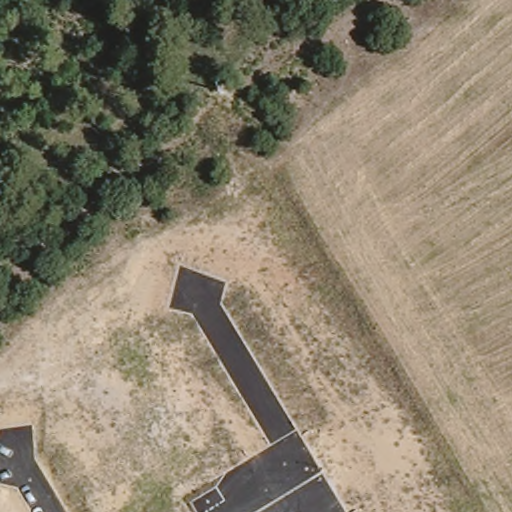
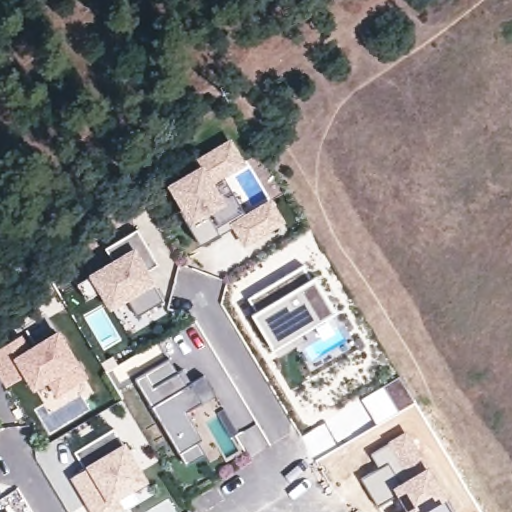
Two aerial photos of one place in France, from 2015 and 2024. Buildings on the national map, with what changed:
new [(193,156),(226,136),(239,157),(219,169),(230,188),(244,210),(267,196),(278,215),(242,237),(228,213),(214,222),(217,228),(197,240),(178,208),(182,205),(167,180),(196,162),(193,156)]
new [(161,266),(152,273),(158,282),(154,285),(164,301),(139,317),(128,301),(110,311),(99,293),(88,300),(78,284),(90,274),(112,260),(105,248),(138,228),(161,266)]
new [(305,270),(310,279),(314,277),(335,312),(275,350),(256,315),(260,312),(251,300),(305,270)]
new [(0,374),(0,341),(15,332),(24,348),(54,330),(79,373),(54,389),(45,374),(31,383),(23,370),(10,378),(5,381),(0,374)]
new [(146,373),(154,387),(180,371),(188,385),(192,382),(203,402),(187,411),(204,438),(199,441),(206,453),(187,465),(136,379),(146,373)]
new [(149,478),(120,499),(125,509),(120,512),(91,512),(71,479),(85,470),(73,452),(114,427),(125,442),(149,478)]
new [(401,483),(428,467),(455,512),(407,512),(410,511),(399,493),(379,507),(363,480),(389,465),(401,483)]

